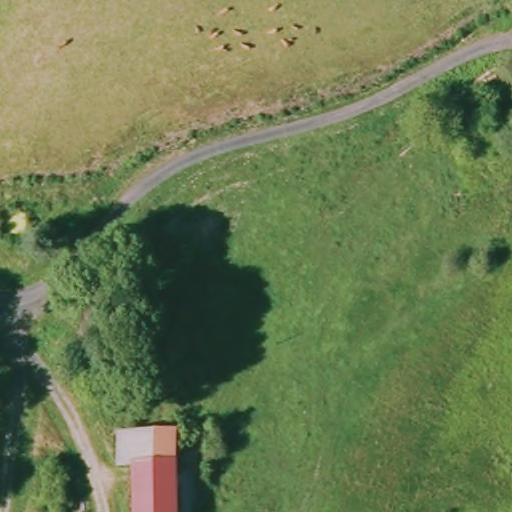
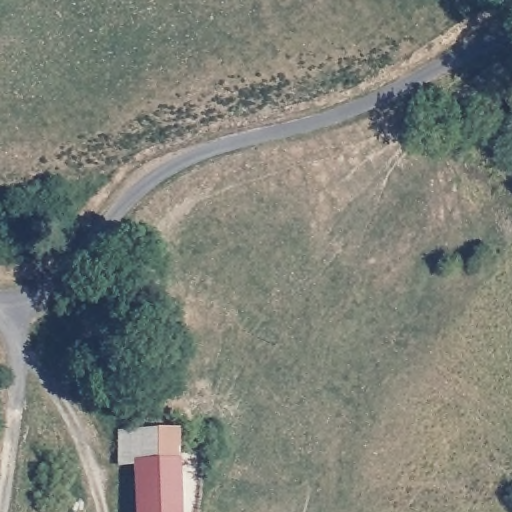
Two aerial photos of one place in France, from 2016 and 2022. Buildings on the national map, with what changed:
unchanged [(128,466),(123,431),(140,430),(182,427),(182,512),(144,512),(144,468),(128,466)]

